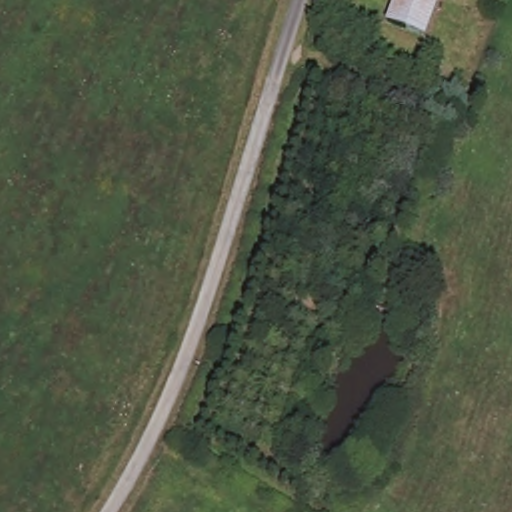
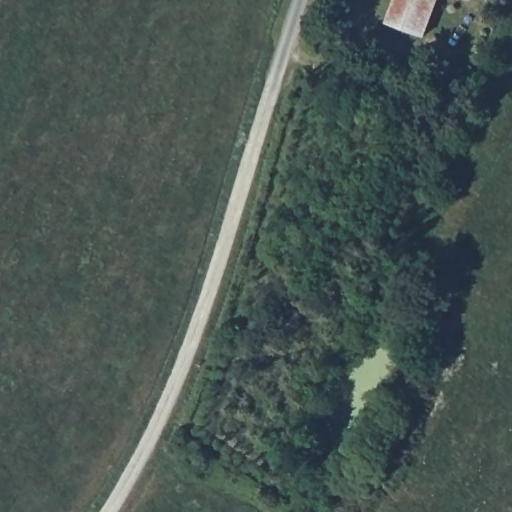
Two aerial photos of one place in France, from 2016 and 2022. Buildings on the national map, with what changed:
unchanged [(425,29),(387,15),(393,0),(434,0),(425,29)]

